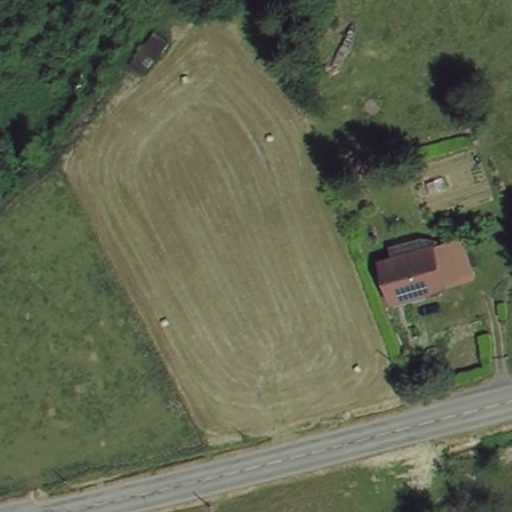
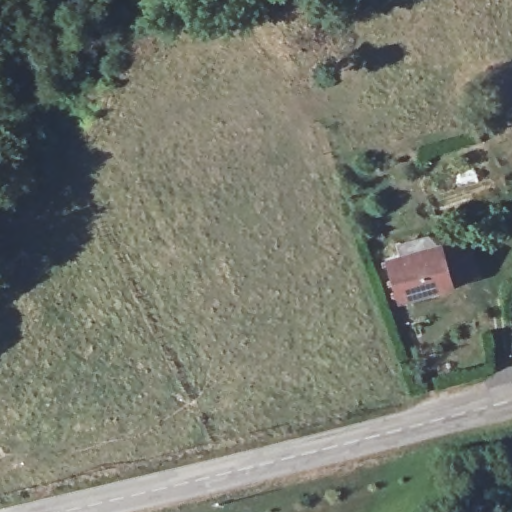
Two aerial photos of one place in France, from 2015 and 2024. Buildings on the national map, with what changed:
unchanged [(474,276),(462,279),(464,283),(395,299),(385,259),(464,237),(474,276)]

